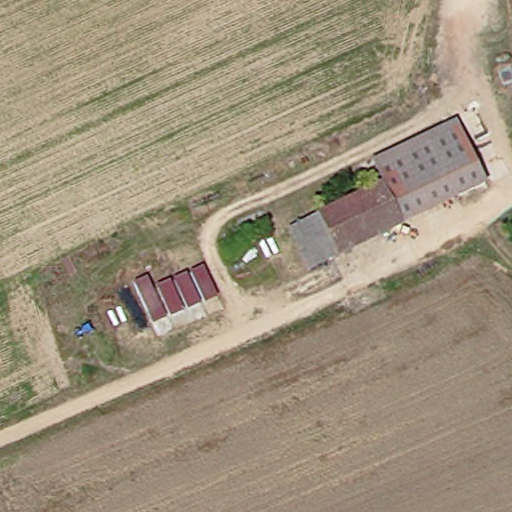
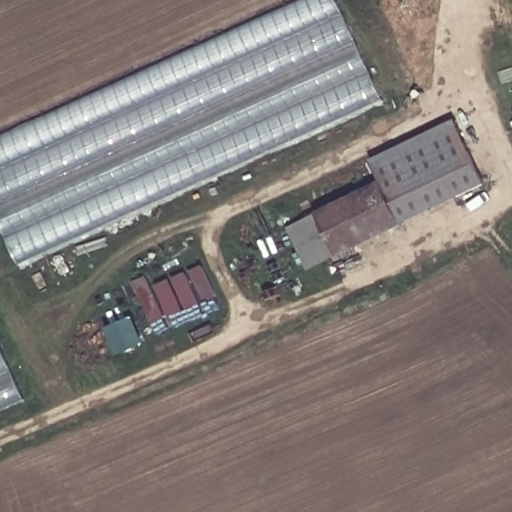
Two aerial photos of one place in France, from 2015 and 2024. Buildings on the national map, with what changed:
new [(0,219),(0,139),(307,0),(339,0),(386,101),(22,265),(0,219)]
unchanged [(367,165),(449,126),(479,190),(395,230),(375,187),(367,165)]
unchanged [(395,230),(303,273),(283,232),(375,187),(395,230)]
unchanged [(167,322),(151,290),(197,266),(211,298),(167,322)]
new [(0,413),(0,351),(23,402),(0,413)]

